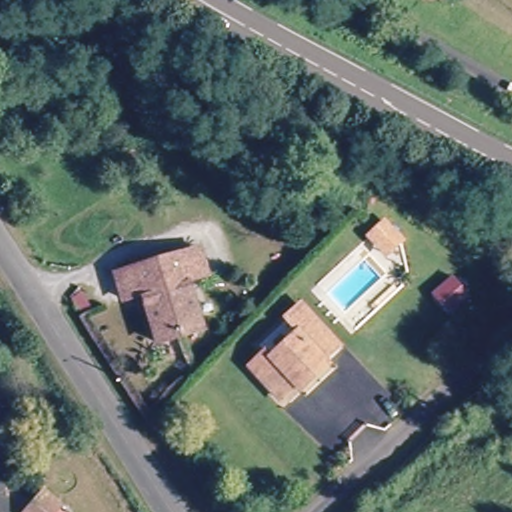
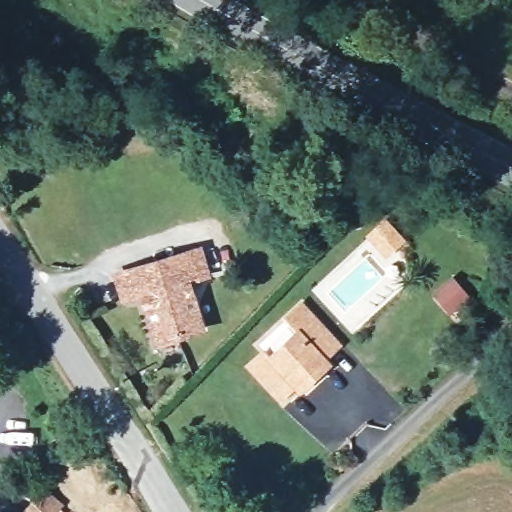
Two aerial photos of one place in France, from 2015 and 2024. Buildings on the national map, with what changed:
unchanged [(188,281),(202,330),(159,341),(146,295),(128,300),(121,275),(198,253),(204,276),(188,281)]
unchanged [(291,376),(273,391),(250,365),(269,348),(275,355),(299,333),(287,318),(306,300),(338,335),(318,353),(322,358),(296,381),(291,376)]
unchanged [(55,512),(27,512),(46,493),(61,506),(55,512)]

